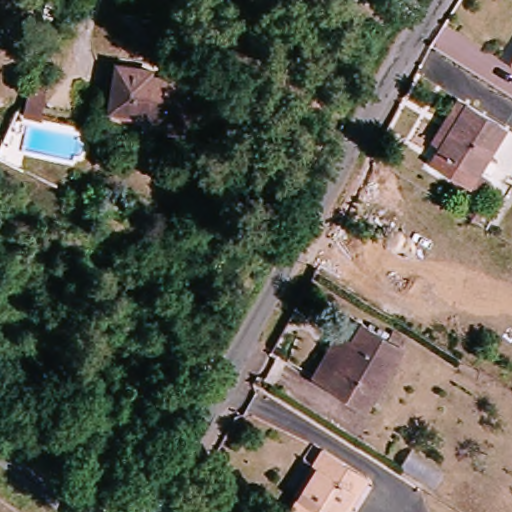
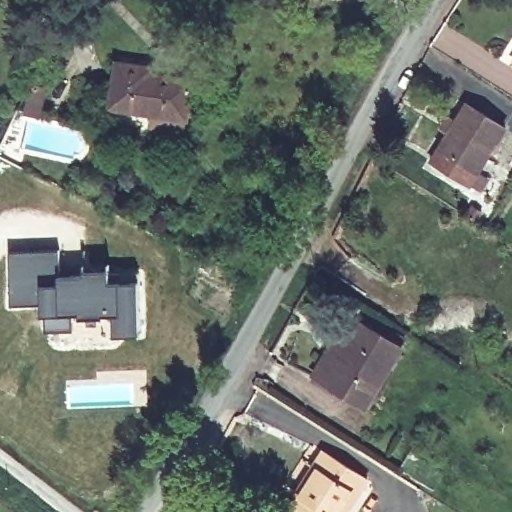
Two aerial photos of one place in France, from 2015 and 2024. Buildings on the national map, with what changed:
unchanged [(151,126),(151,122),(115,117),(116,111),(113,110),(120,63),(153,68),(153,75),(195,81),(189,122),(186,121),(185,130),(151,126)]
unchanged [(473,184),(434,161),(443,147),(433,141),(459,99),(469,105),(508,129),(473,184)]
unchanged [(474,204),(485,210),(478,221),(467,215),(474,204)]
new [(61,248),(62,275),(87,274),(86,269),(112,268),(112,272),(141,271),(143,333),(117,333),(116,311),(108,311),(107,315),(82,316),(82,312),(75,312),(76,329),(48,330),(47,302),(13,304),(11,250),(61,248)]
unchanged [(399,352),(364,410),(324,386),(311,378),(336,337),(349,344),(359,327),(399,352)]
unchanged [(297,499),(315,471),(324,457),(369,485),(359,501),(352,512),(297,512),(303,503),(297,499)]

